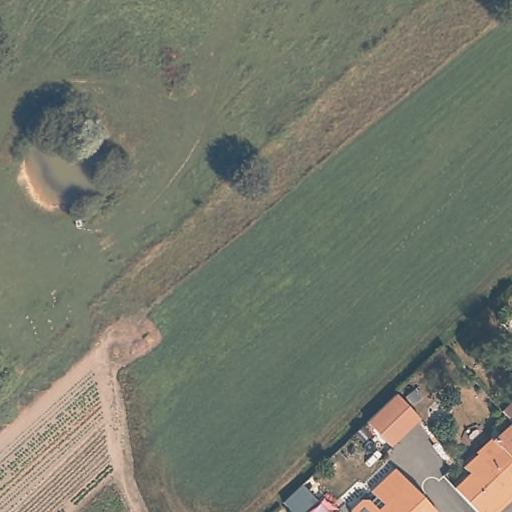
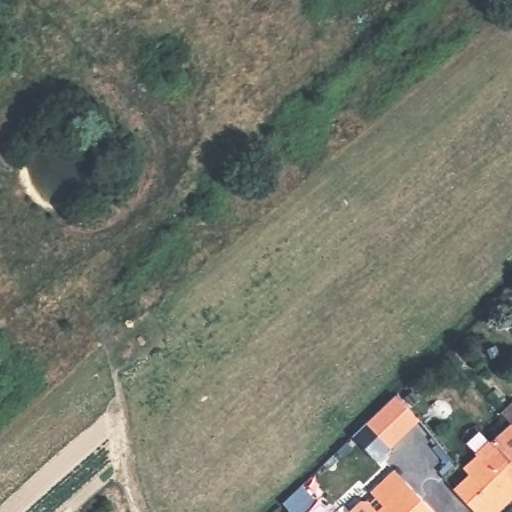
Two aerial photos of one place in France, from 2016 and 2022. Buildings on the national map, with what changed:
unchanged [(417,423),(386,453),(363,425),(393,396),(417,423)]
unchanged [(460,485),(455,478),(509,430),(500,420),(512,408),(512,502),(509,505),(502,512),(472,512),(451,492),(460,485)]
unchanged [(435,510),(433,512),(371,512),(383,501),(367,484),(391,462),(435,510)]

